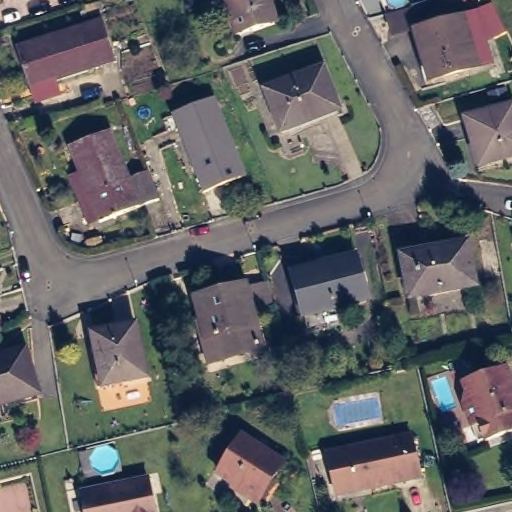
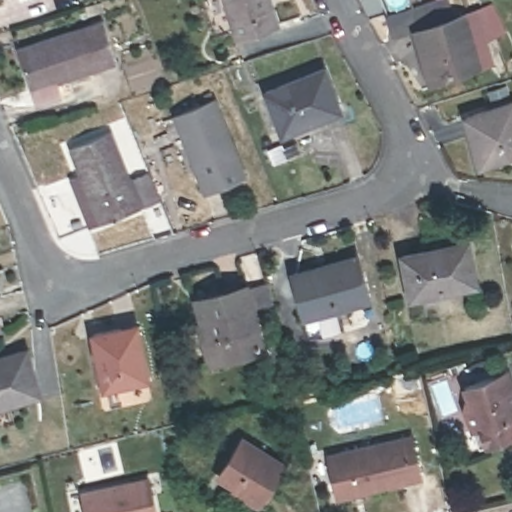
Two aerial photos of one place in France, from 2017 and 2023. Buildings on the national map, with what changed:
unchanged [(277,24),(236,36),(225,0),(269,0),(277,24)]
unchanged [(491,67),(479,71),(430,85),(416,37),(418,36),(411,11),(440,2),(446,28),(465,22),(476,19),(491,67)]
unchanged [(490,9),(505,37),(494,43),(480,15),(490,9)]
unchanged [(107,22),(122,63),(60,83),(63,93),(39,101),(22,50),(107,22)]
unchanged [(327,69),(343,110),(286,132),(270,91),(327,69)]
unchanged [(213,100),(245,176),(205,192),(174,115),(213,100)]
unchanged [(512,110),(512,161),(481,170),(467,123),(512,110)]
unchanged [(73,176),(84,172),(75,147),(115,132),(133,179),(152,172),(162,201),(105,223),(95,227),(73,176)]
unchanged [(468,243),(475,286),(410,298),(401,256),(468,243)]
unchanged [(371,304),(309,320),(299,280),(360,263),(371,304)]
unchanged [(196,334),(204,333),(198,311),(244,299),(260,359),(225,369),(207,373),(196,334)]
unchanged [(135,326),(146,379),(103,388),(92,335),(135,326)]
unchanged [(40,394),(10,403),(8,401),(0,403),(0,360),(28,352),(40,394)]
unchanged [(467,428),(460,406),(465,395),(461,387),(503,371),(512,395),(512,425),(509,426),(511,434),(481,445),(475,448),(467,428)]
unchanged [(278,463),(255,499),(215,474),(238,437),(278,463)]
unchanged [(336,490),(327,455),(411,438),(421,479),(360,492),(338,496),(336,490)]
unchanged [(150,512),(79,512),(75,496),(143,481),(150,512)]

